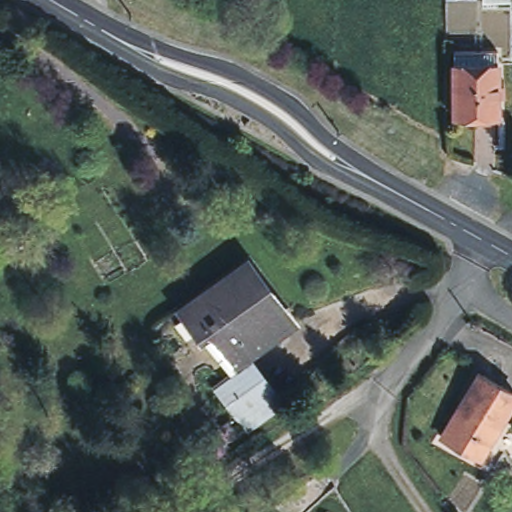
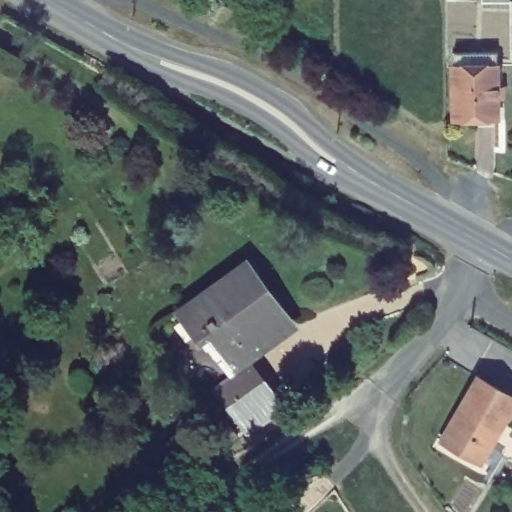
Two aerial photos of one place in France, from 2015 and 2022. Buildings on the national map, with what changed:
unchanged [(509,2),(483,3),(483,0),(509,0),(509,2)]
unchanged [(455,121),(454,64),(454,52),(497,52),(498,65),(498,121),(455,121)]
unchanged [(212,326),(210,323),(198,332),(183,312),(248,265),(291,325),(236,365),(225,350),(230,347),(215,325),(212,326)]
unchanged [(250,366),(282,408),(247,434),(215,392),(250,366)]
unchanged [(512,396),(512,411),(482,462),(442,441),(479,377),(512,396)]

